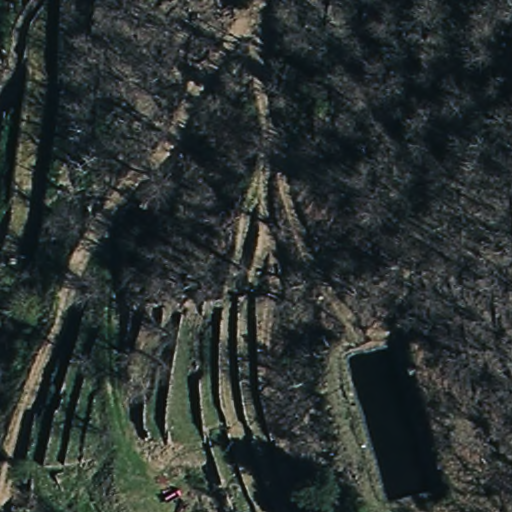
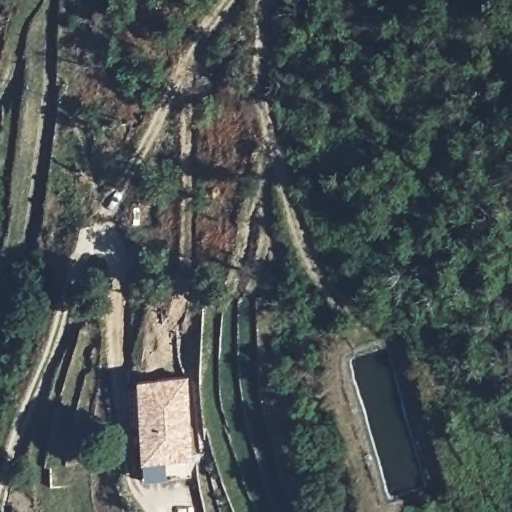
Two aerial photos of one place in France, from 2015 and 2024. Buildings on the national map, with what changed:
unchanged [(7,50),(4,66),(0,66),(0,49),(7,50)]
new [(191,460),(139,462),(133,380),(186,377),(191,460)]

